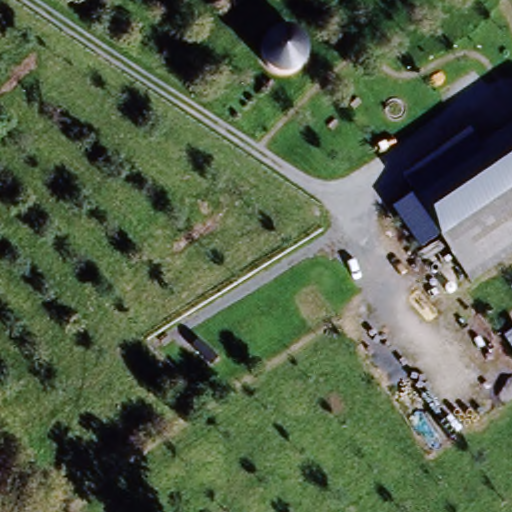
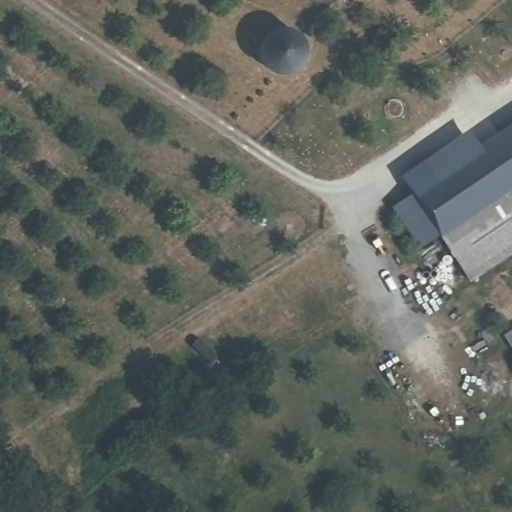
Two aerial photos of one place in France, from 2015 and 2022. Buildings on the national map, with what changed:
unchanged [(286,29),(288,30),(291,30),(293,31),(295,32),(297,33),(298,35),(300,36),(302,37),(303,40),(305,41),(305,44),(306,45),(306,47),(307,50),(307,52),(307,55),(306,56),(306,59),(305,60),(305,61),(304,63),(303,65),(301,66),(300,68),(298,70),(296,71),(295,72),(292,73),(290,74),(288,75),(286,75),(284,75),(282,75),(281,75),(280,75),(277,74),(275,73),(273,72),(271,71),(270,70),(268,68),(266,66),(265,65),(264,62),(263,60),(262,59),(261,56),(261,54),(261,52),(261,50),(261,47),(262,45),(263,43),(264,41),(265,39),(266,37),(268,35),(270,34),(271,33),(273,31),(275,31),(277,30),(280,30),(282,29),(284,29),(286,29)]
unchanged [(512,126),(512,253),(471,280),(441,235),(413,194),(479,149),(512,126)]
unchanged [(402,178),(469,134),(479,149),(413,194),(402,178)]
unchanged [(441,235),(422,247),(394,206),(413,194),(441,235)]

